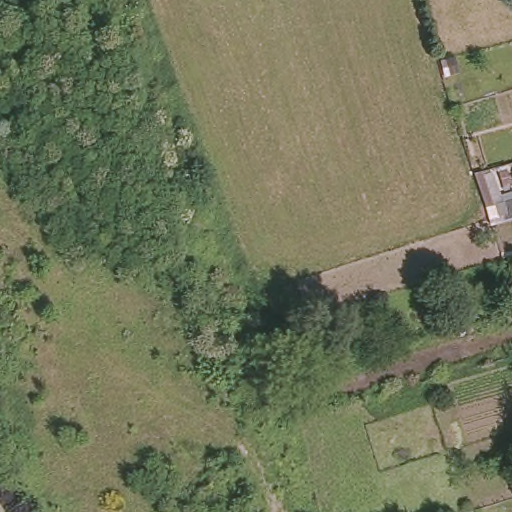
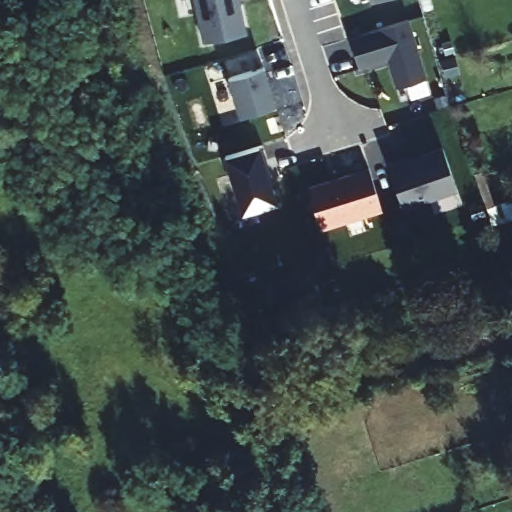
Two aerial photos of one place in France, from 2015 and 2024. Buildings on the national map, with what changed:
new [(244,33),(200,45),(190,0),(235,0),(244,33)]
new [(407,17),(425,76),(395,86),(386,58),(357,67),(347,36),(407,17)]
new [(262,66),(275,105),(239,115),(227,77),(262,66)]
new [(242,215),(224,157),(260,146),(279,204),(242,215)]
new [(411,158),(412,162),(425,158),(424,155),(445,149),(458,190),(404,208),(390,165),(411,158)]
new [(307,187),(369,168),(382,210),(320,229),(307,187)]

